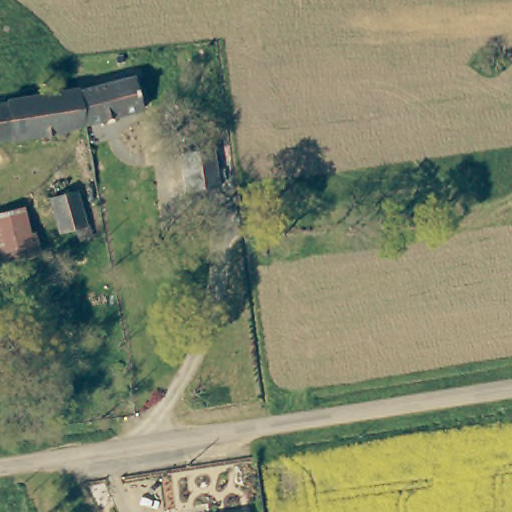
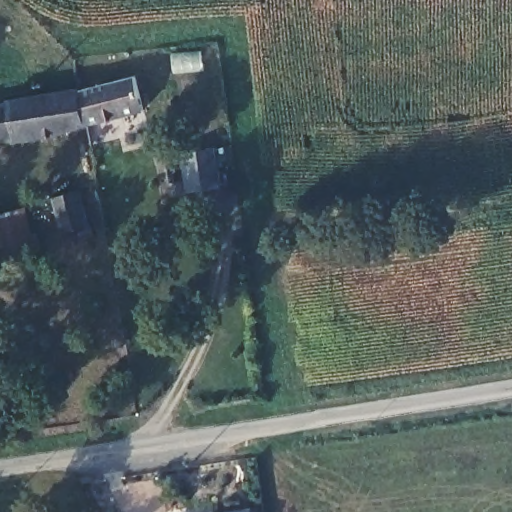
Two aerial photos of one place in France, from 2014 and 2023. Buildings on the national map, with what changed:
unchanged [(82,91),(82,89),(137,79),(145,109),(145,114),(87,128),(82,91)]
unchanged [(11,106),(15,100),(82,91),(87,128),(56,134),(0,143),(0,108),(11,106)]
unchanged [(219,150),(224,189),(190,193),(186,154),(219,150)]
unchanged [(81,195),(89,228),(65,233),(57,200),(81,195)]
unchanged [(14,212),(23,254),(0,258),(0,215),(14,212)]

